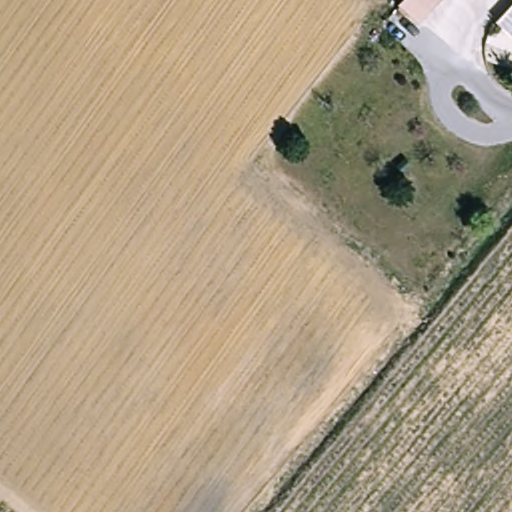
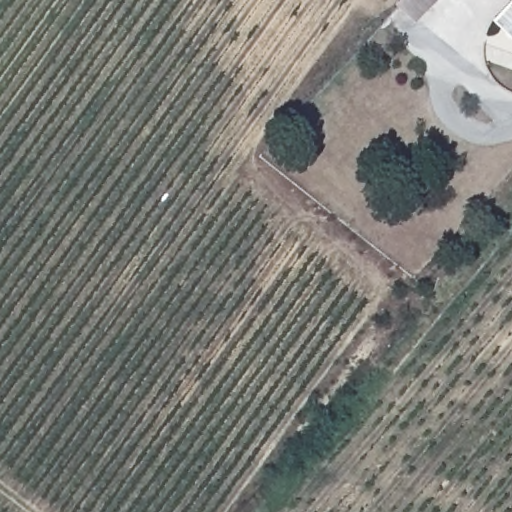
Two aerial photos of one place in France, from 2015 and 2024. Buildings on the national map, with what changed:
unchanged [(420,22),(402,3),(405,0),(442,0),(420,22)]
unchanged [(512,9),(512,33),(500,22),(512,9)]

